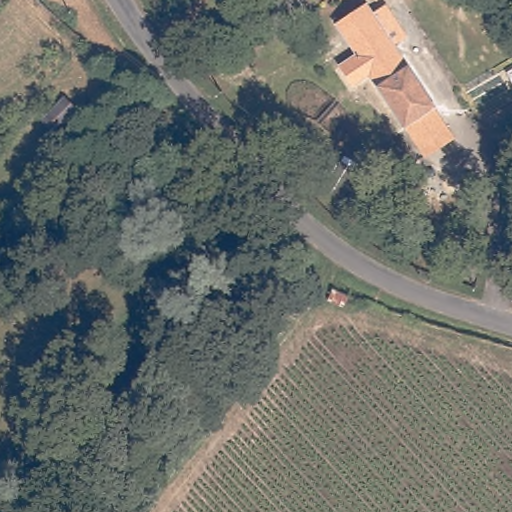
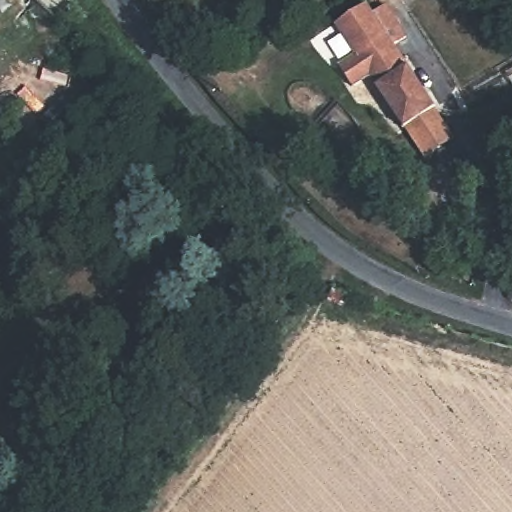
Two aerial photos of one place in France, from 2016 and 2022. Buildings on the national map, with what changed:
unchanged [(372,2),(370,0),(376,0),(372,2)]
unchanged [(430,146),(416,124),(411,127),(375,76),(357,87),(342,65),(358,55),(347,38),(392,9),(400,20),(386,30),(440,108),(436,111),(452,132),(430,146)]

